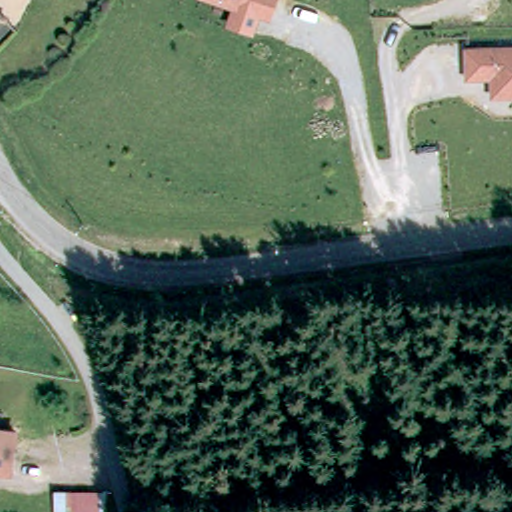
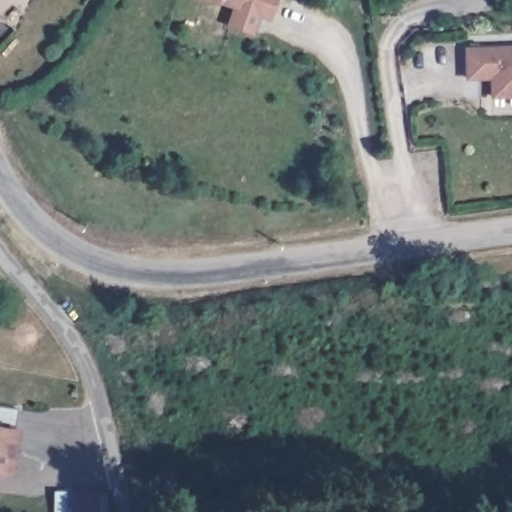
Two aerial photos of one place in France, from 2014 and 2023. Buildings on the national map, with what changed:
unchanged [(262,18),(255,36),(227,26),(232,9),(203,0),(279,0),(272,21),(262,18)]
unchanged [(512,99),(491,99),(490,80),(465,80),(465,47),(512,46),(512,99)]
unchanged [(0,475),(0,425),(15,428),(8,477),(0,475)]
unchanged [(107,491),(106,512),(54,512),(54,490),(107,491)]

